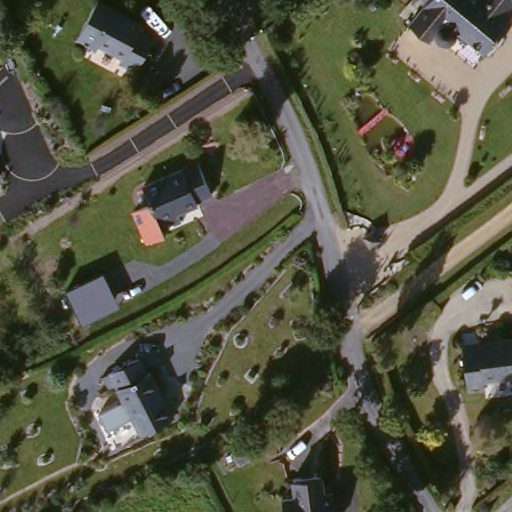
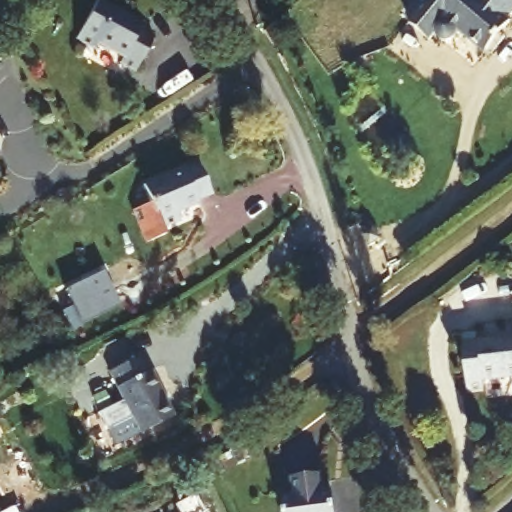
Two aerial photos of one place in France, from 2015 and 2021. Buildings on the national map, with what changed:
unchanged [(511,31),(482,68),(453,46),(448,54),(444,55),(435,49),(428,58),(407,42),(439,0),(512,0),(512,13),(503,25),(511,31)]
unchanged [(138,30),(135,34),(149,41),(130,78),(117,70),(121,64),(97,49),(92,56),(72,44),(94,3),(138,30)]
unchanged [(184,164),(201,193),(187,200),(188,202),(169,212),(172,220),(155,228),(159,234),(141,243),(125,215),(139,208),(130,192),(184,164)]
unchanged [(82,324),(66,291),(104,273),(121,306),(82,324)]
unchanged [(510,373),(476,376),(478,389),(460,390),(453,345),(512,336),(512,383),(510,373)]
unchanged [(100,371),(129,360),(136,375),(141,373),(162,418),(127,433),(100,371)]
unchanged [(277,502),(290,500),(287,485),(318,478),(322,496),(328,495),(332,512),(279,512),(277,502)]

